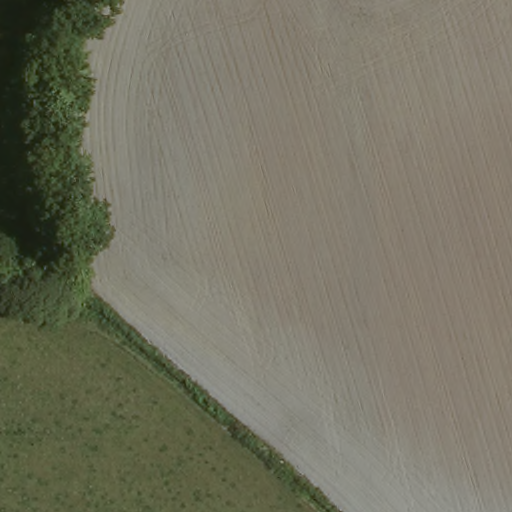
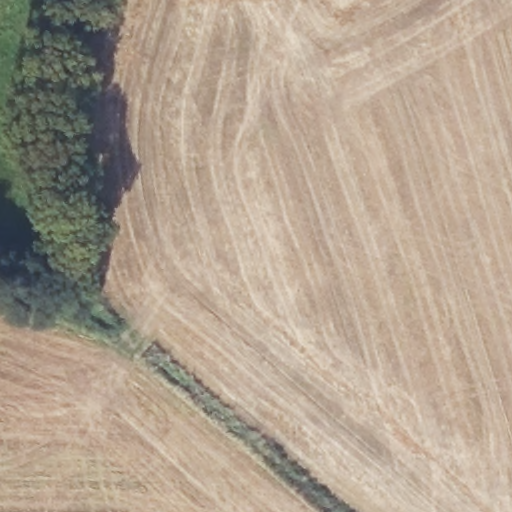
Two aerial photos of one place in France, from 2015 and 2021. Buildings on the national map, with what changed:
[]

